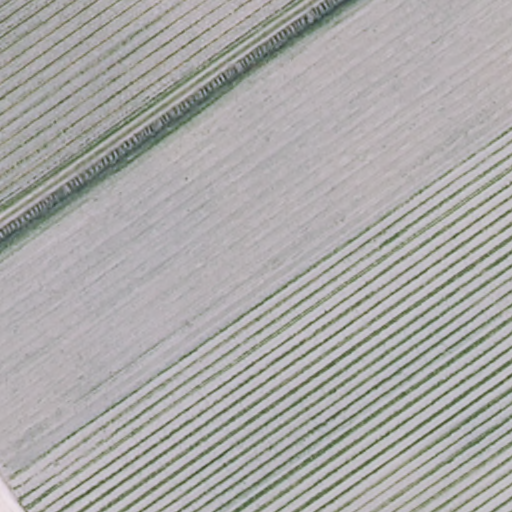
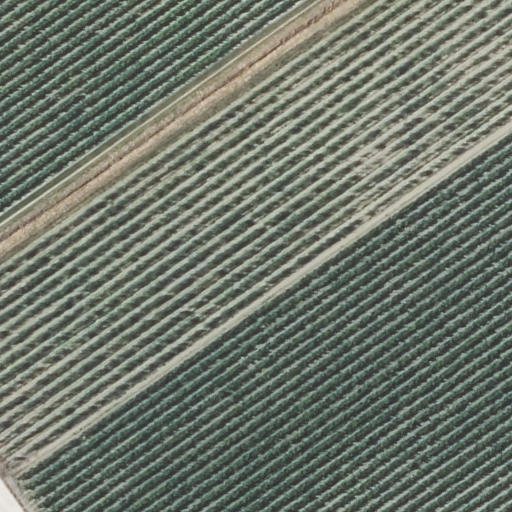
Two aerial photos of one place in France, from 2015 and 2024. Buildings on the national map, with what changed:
[]

